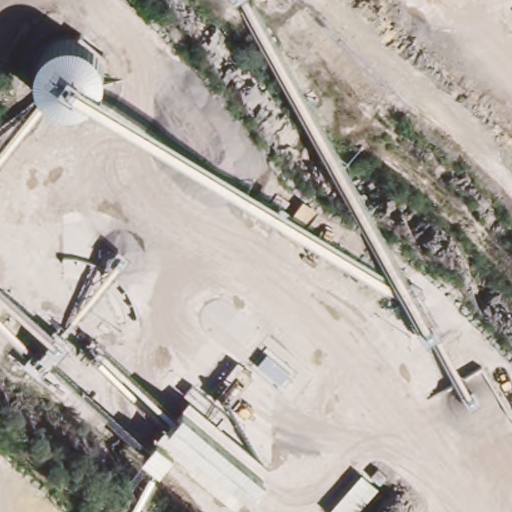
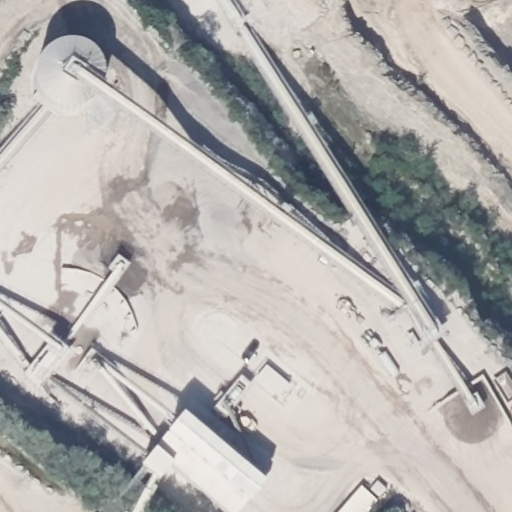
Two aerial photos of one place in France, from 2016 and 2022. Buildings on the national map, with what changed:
unchanged [(70,46),(79,48),(89,52),(97,60),(104,72),(104,84),(101,96),(95,107),(85,116),(73,120),(61,119),(51,113),(42,105),(36,94),(34,83),(35,70),(39,60),(49,54),(70,46)]
unchanged [(158,484),(141,469),(149,459),(146,456),(181,420),(264,489),(244,512),(222,512),(171,473),(158,484)]

